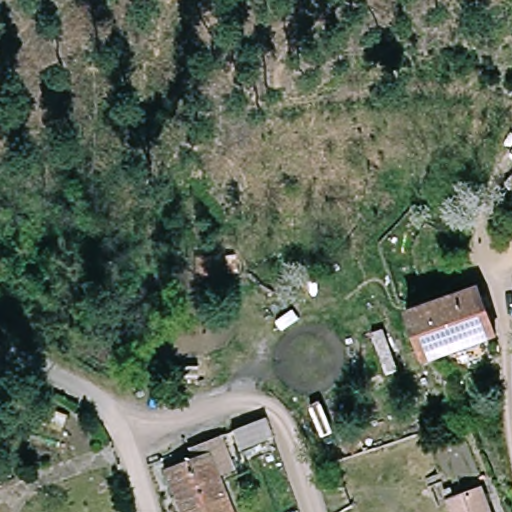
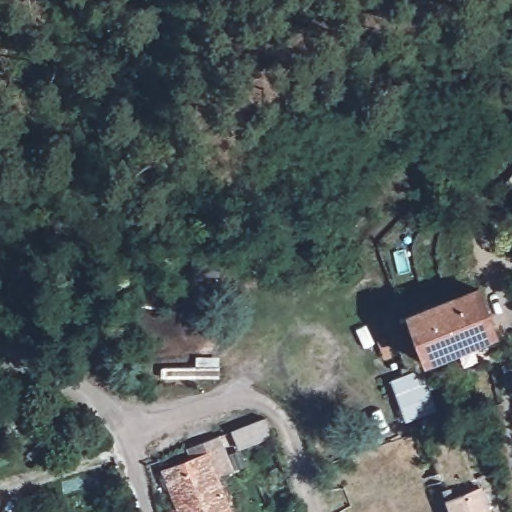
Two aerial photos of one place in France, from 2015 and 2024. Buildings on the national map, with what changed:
unchanged [(512,173),(512,183),(507,179),(512,173)]
unchanged [(411,312),(480,286),(497,334),(430,360),(411,312)]
new [(437,413),(406,424),(391,382),(421,371),(437,413)]
unchanged [(270,428),(235,440),(229,428),(260,416),(270,428)]
unchanged [(220,479),(234,512),(183,512),(165,469),(179,463),(173,449),(218,432),(235,474),(220,479)]
unchanged [(484,492),(492,512),(451,512),(444,496),(453,491),(460,503),(484,492)]

